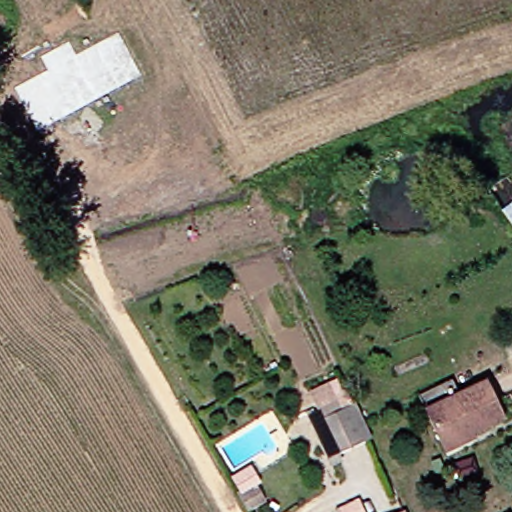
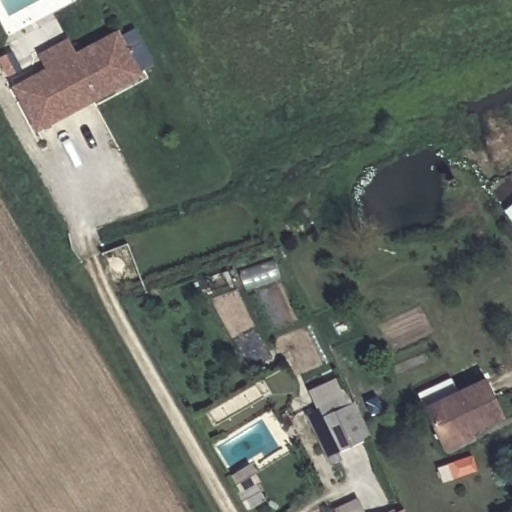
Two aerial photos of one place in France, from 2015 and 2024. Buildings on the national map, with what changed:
new [(36,132),(12,86),(45,67),(39,55),(70,39),(77,52),(119,30),(143,75),(36,132)]
new [(512,219),(504,210),(512,204),(512,219)]
unchanged [(445,451),(442,446),(425,408),(418,393),(452,378),(459,392),(485,379),(503,417),(472,432),(474,437),(445,451)]
unchanged [(330,449),(321,432),(317,422),(308,427),(303,417),(312,412),(315,419),(330,412),(349,402),(349,404),(354,413),(365,437),(332,453),(330,449)]
unchanged [(251,481),(260,497),(243,506),(234,490),(251,481)]
unchanged [(329,510),(325,502),(345,493),(348,501),(352,508),(353,512),(330,512),(329,510)]
unchanged [(400,508),(402,512),(393,512),(400,508)]

